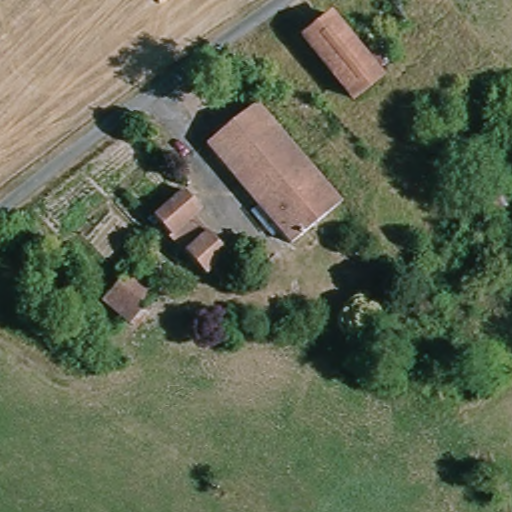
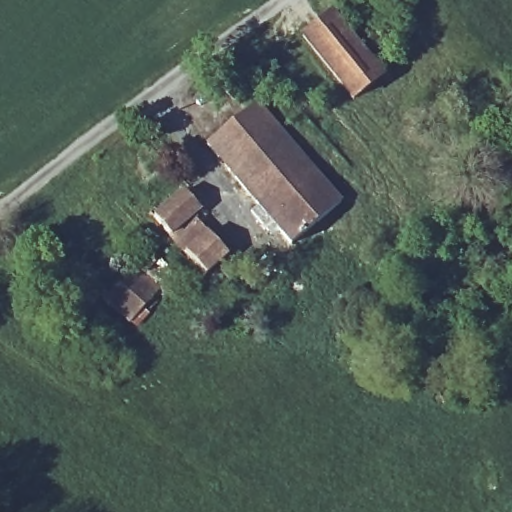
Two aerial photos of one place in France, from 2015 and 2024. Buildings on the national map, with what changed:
unchanged [(300,40),(323,19),(377,79),(353,99),(300,40)]
unchanged [(254,102),(336,205),(288,246),(202,146),(254,102)]
unchanged [(227,250),(206,270),(150,220),(176,194),(198,209),(193,215),(227,250)]
unchanged [(135,330),(110,309),(133,276),(160,298),(135,330)]

